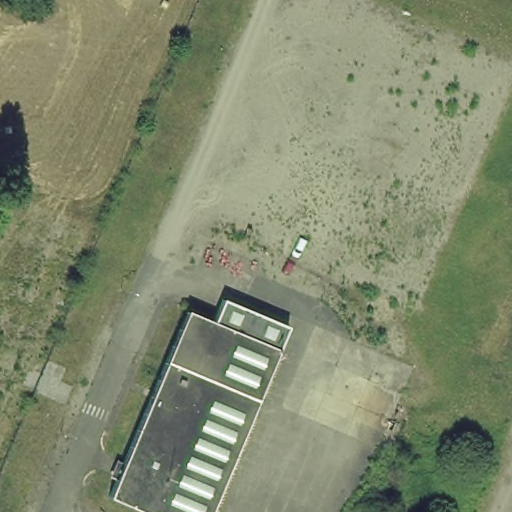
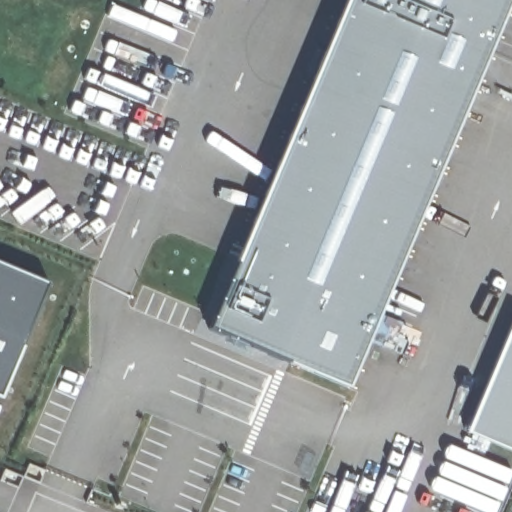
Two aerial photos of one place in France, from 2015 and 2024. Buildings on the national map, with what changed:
new [(349,387),(208,328),(347,0),(511,0),(349,387)]
new [(3,395),(0,394),(0,264),(47,283),(3,395)]
demolished [(181,313),(209,321),(218,299),(287,324),(209,512),(143,512),(103,496),(181,313)]
new [(512,450),(467,432),(512,322),(512,450)]

